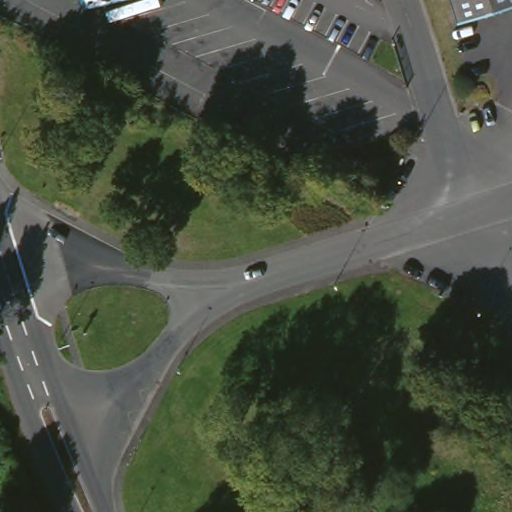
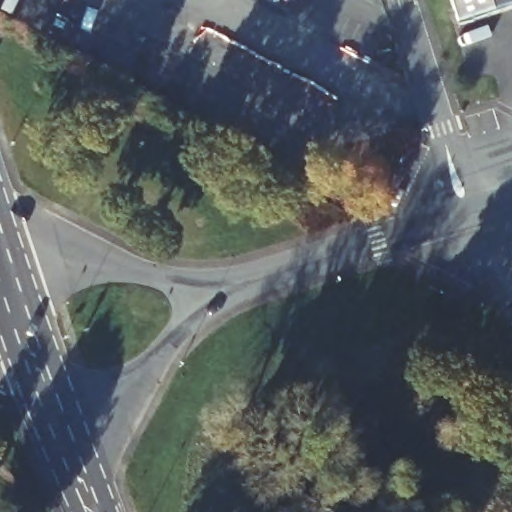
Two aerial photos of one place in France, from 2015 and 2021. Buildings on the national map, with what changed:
unchanged [(512,3),(467,16),(462,0),(512,0),(512,3)]

